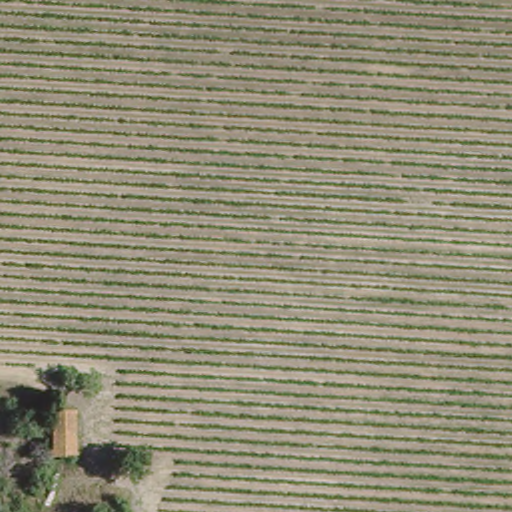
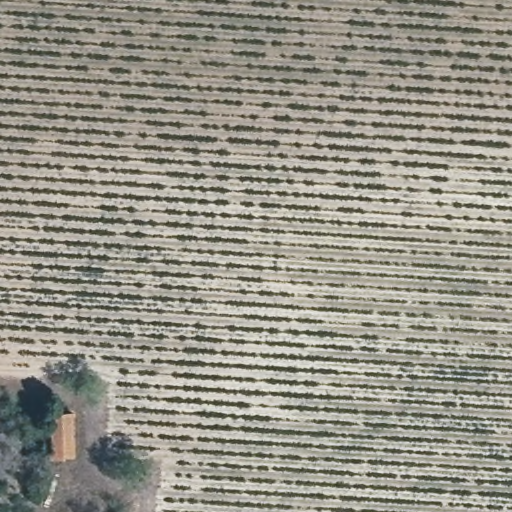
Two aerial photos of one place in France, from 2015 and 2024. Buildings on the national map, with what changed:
unchanged [(47,458),(49,414),(72,414),(70,457),(47,458)]

